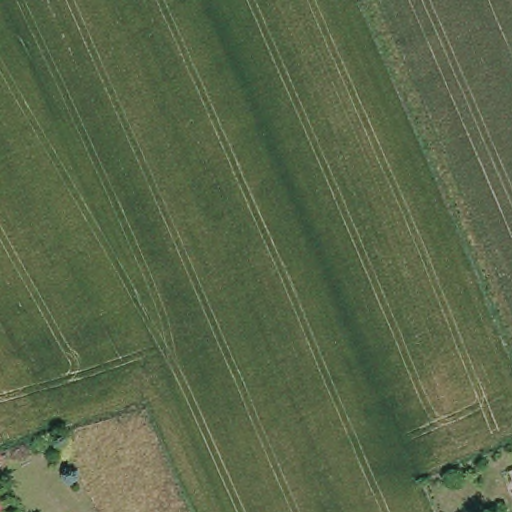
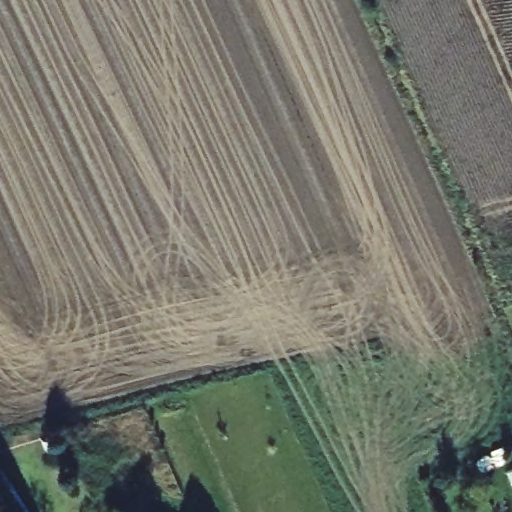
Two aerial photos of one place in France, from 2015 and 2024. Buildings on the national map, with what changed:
unchanged [(2,512),(0,512),(0,508),(2,512)]

